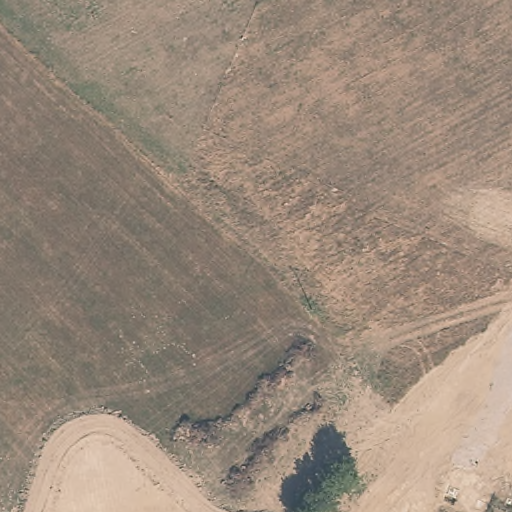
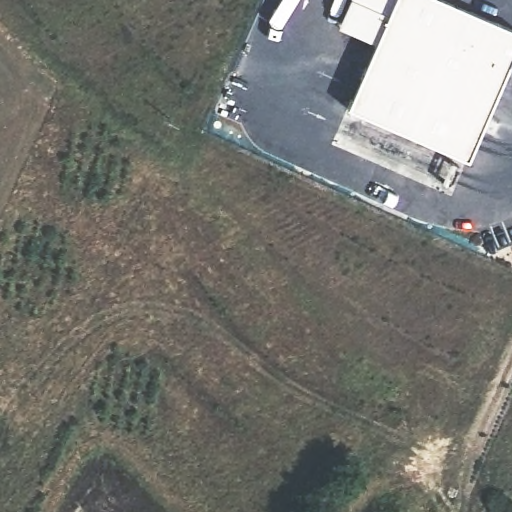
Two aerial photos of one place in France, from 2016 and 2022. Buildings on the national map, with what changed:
new [(353,0),(397,0),(378,43),(341,27),(353,0)]
new [(378,43),(397,0),(445,0),(512,29),(512,65),(470,161),(349,108),(378,43)]

